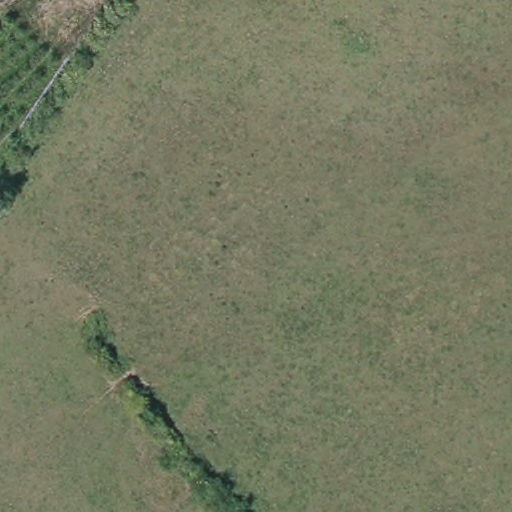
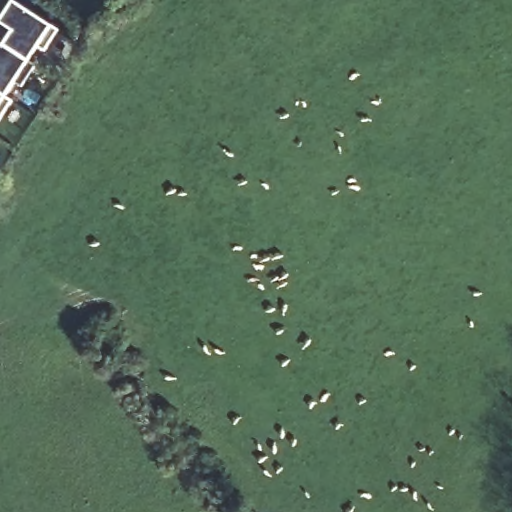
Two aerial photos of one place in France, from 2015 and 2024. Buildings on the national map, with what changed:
new [(12,31),(0,23),(0,20),(12,0),(57,30),(45,51),(38,48),(30,62),(35,66),(21,87),(15,84),(6,97),(12,101),(0,119),(0,43),(3,45),(12,31)]

